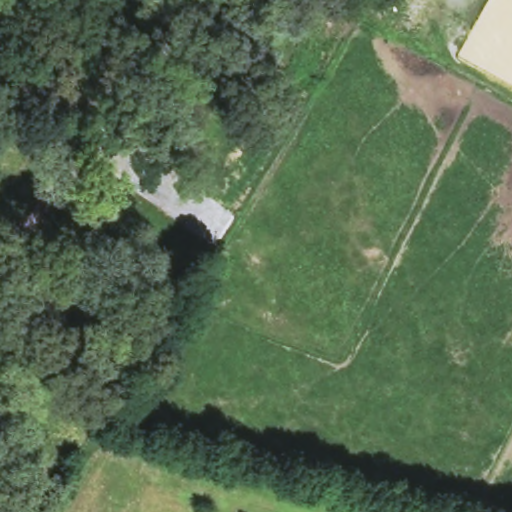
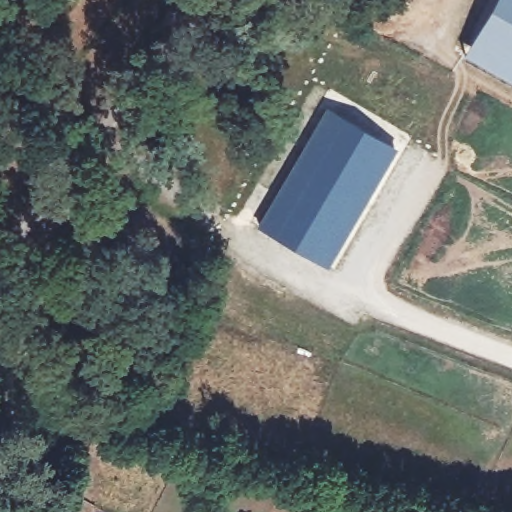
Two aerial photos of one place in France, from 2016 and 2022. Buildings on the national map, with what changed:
new [(328,107),(397,149),(328,264),(259,222),(328,107)]

